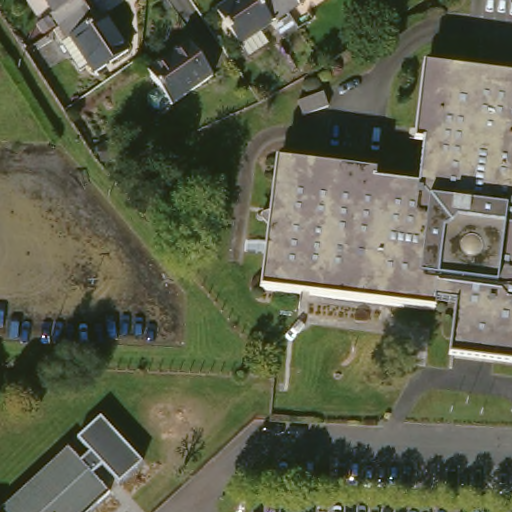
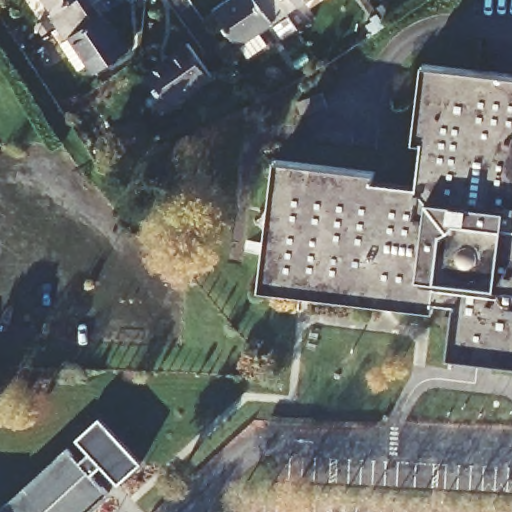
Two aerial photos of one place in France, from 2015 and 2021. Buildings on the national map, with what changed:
unchanged [(57,16),(62,12),(54,0),(95,0),(99,5),(67,29),(57,16)]
unchanged [(244,48),(220,11),(236,0),(280,0),(291,16),(244,48)]
unchanged [(291,16),(280,0),(313,0),(291,16)]
unchanged [(67,29),(99,5),(108,18),(111,16),(136,50),(107,72),(80,36),(74,40),(67,29)]
unchanged [(199,42),(221,75),(177,104),(156,71),(199,42)]
unchanged [(440,311),(267,288),(285,157),(381,170),(380,180),(423,186),(431,126),(426,125),(433,71),(485,78),(486,74),(512,78),(512,343),(466,337),(470,307),(460,306),(441,304),(440,311)]
unchanged [(460,306),(470,307),(466,337),(512,343),(512,366),(452,359),(460,306)]
unchanged [(93,468),(99,469),(97,473),(117,496),(98,512),(1,512),(75,449),(93,468)]

